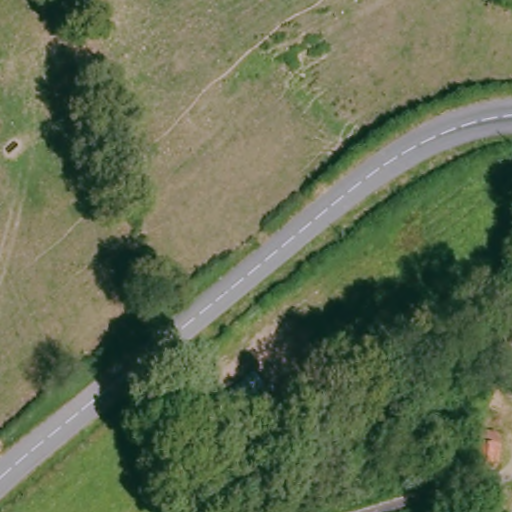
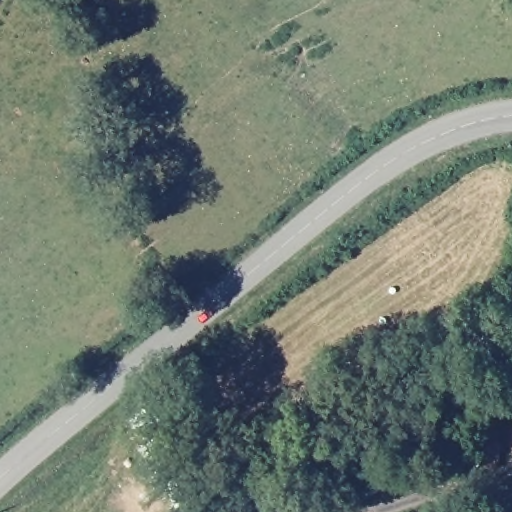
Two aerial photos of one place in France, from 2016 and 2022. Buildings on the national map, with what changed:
unchanged [(489,429),(488,442),(494,442),(492,467),(467,466),(469,428),(489,429)]

